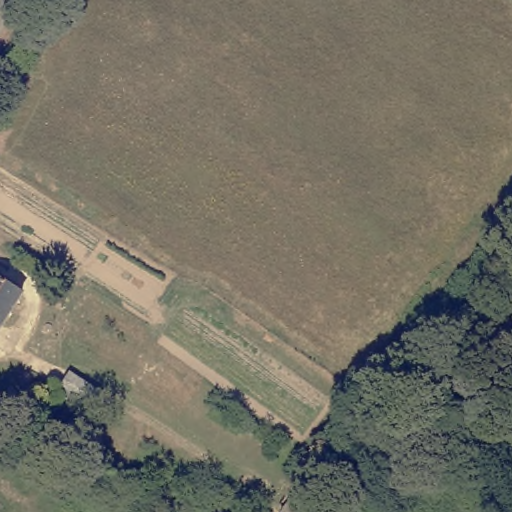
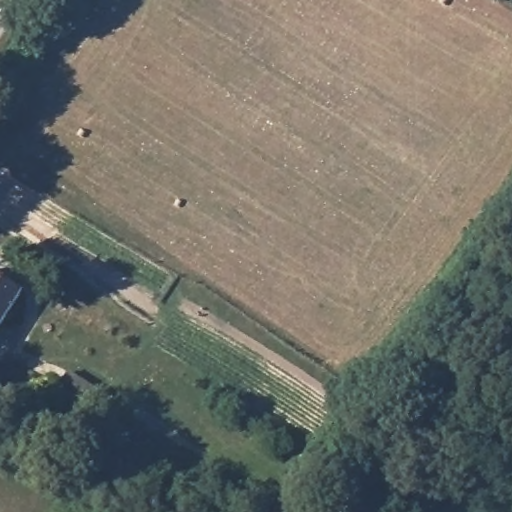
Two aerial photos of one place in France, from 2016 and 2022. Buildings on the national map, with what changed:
unchanged [(21,288),(0,322),(0,275),(21,288)]
unchanged [(56,386),(66,369),(97,389),(110,397),(100,411),(87,404),(56,386)]

